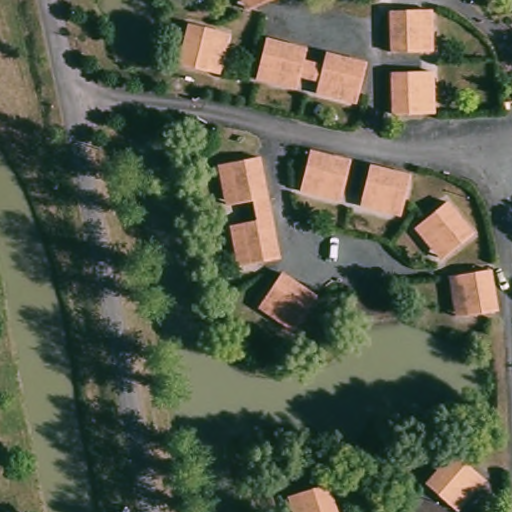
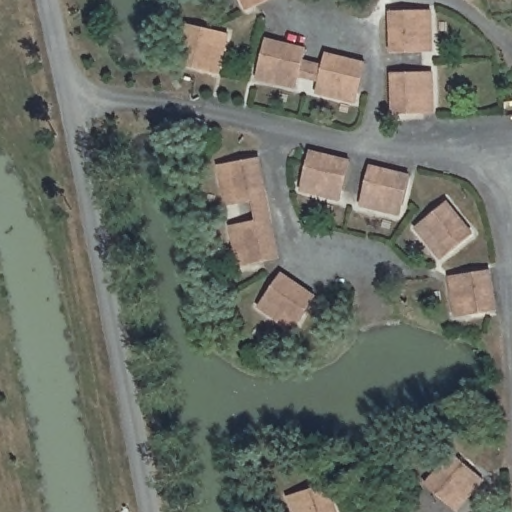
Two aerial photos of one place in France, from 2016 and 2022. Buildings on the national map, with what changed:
unchanged [(246,0),(254,0),(247,3),(246,0)]
unchanged [(389,13),(418,12),(428,12),(429,49),(421,50),(391,51),(389,13)]
unchanged [(218,72),(209,70),(181,62),(191,24),(219,32),(228,34),(218,72)]
unchanged [(320,93),(323,83),(326,70),(308,66),(304,79),(302,88),(260,77),(263,69),(270,39),(370,66),(363,93),(360,104),(320,93)]
unchanged [(393,70),(422,68),(431,67),(433,108),(423,108),(394,110),(393,70)]
unchanged [(301,188),(303,179),(309,151),(350,161),(343,189),(341,198),(301,188)]
unchanged [(236,228),(244,226),(240,205),(232,207),(224,168),(233,167),(260,162),(269,202),(257,204),(260,223),(272,220),(280,262),(252,267),(244,269),(236,228)]
unchanged [(359,201),(362,192),(368,165),(401,173),(403,174),(409,175),(402,201),(399,210),(359,201)]
unchanged [(416,226),(423,220),(444,202),(469,232),(448,250),(441,256),(416,226)]
unchanged [(260,301),(264,294),(281,268),(314,290),(297,315),(292,323),(260,301)]
unchanged [(454,278),(462,276),(491,271),(493,280),(494,289),(494,290),(498,310),(468,314),(459,316),(454,278)]
unchanged [(456,509),(448,502),(426,483),(452,453),(474,473),(482,479),(456,509)]
unchanged [(299,496),(324,487),(333,512),(293,512),(289,499),(299,496)]

